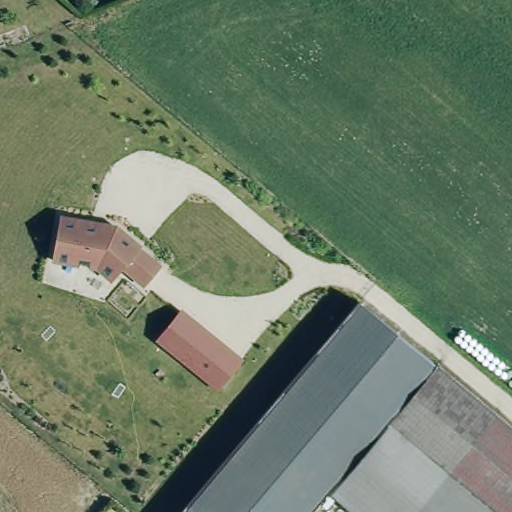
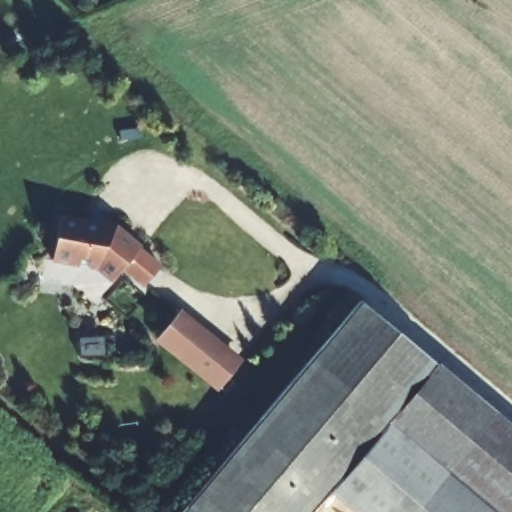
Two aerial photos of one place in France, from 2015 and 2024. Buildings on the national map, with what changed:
unchanged [(146,254),(145,255),(166,273),(150,292),(129,275),(117,287),(102,275),(57,266),(65,224),(121,233),(146,254)]
unchanged [(312,368),(365,305),(407,340),(440,368),(512,429),(512,512),(364,512),(338,490),(320,512),(191,512),(312,368)]
unchanged [(237,355),(212,389),(150,339),(178,307),(237,355)]

